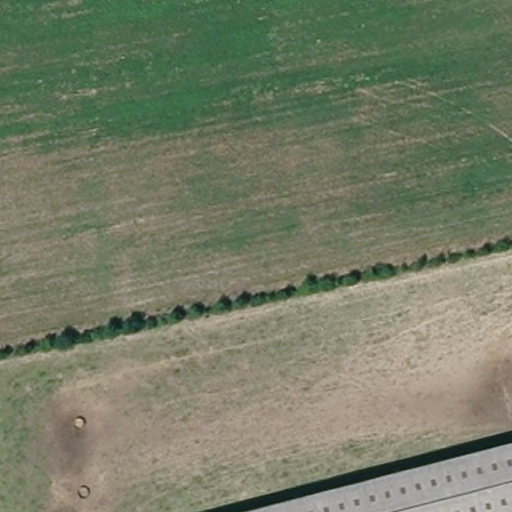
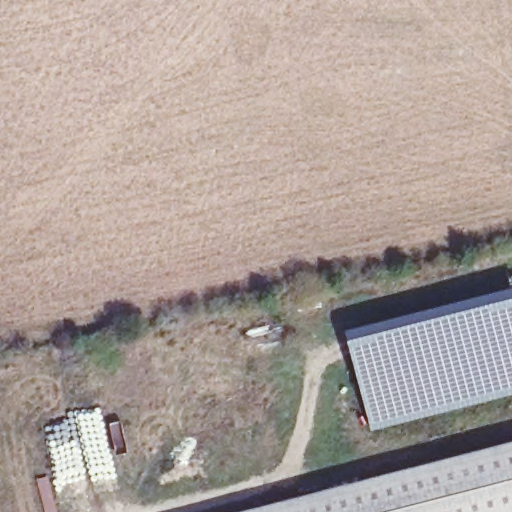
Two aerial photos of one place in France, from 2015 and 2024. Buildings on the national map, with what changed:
new [(512,288),(512,394),(372,432),(346,331),(512,288)]
unchanged [(512,449),(512,512),(270,512),(512,449)]

